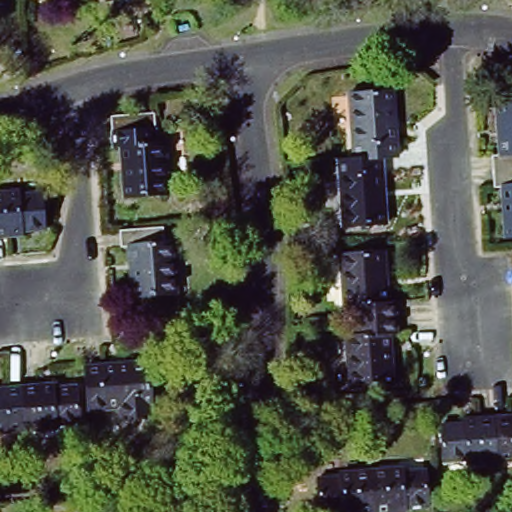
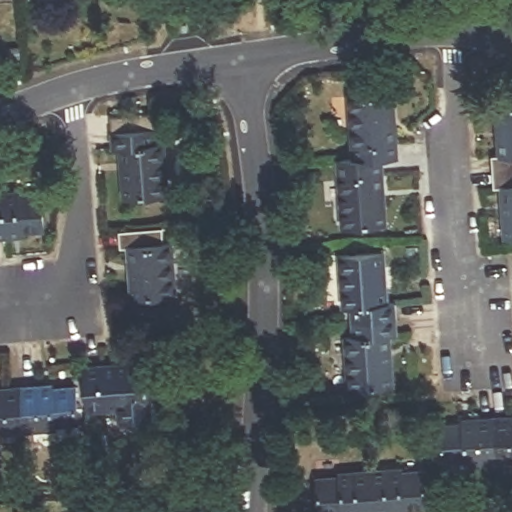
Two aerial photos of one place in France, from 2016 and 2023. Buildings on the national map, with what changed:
unchanged [(346,93),(390,90),(391,109),(395,157),(377,158),(350,159),(346,93)]
unchanged [(485,159),(493,158),(490,108),(512,107),(512,174),(486,175),(485,159)]
unchanged [(120,148),(111,149),(109,119),(154,115),(157,144),(163,144),(167,196),(125,199),(120,148)]
unchanged [(377,158),(381,222),(340,224),(336,160),(350,159),(377,158)]
unchanged [(500,239),(496,188),(488,189),(486,175),(512,174),(512,239),(500,239)]
unchanged [(20,195),(45,193),(47,230),(10,233),(10,238),(0,239),(0,192),(18,190),(20,195)]
unchanged [(122,247),(115,248),(112,233),(158,229),(160,244),(166,243),(170,293),(127,297),(122,247)]
unchanged [(345,302),(340,302),(336,252),(377,249),(380,299),(387,298),(389,316),(347,320),(345,302)]
unchanged [(390,333),(384,333),(387,382),(344,385),(341,335),(348,334),(347,320),(389,316),(390,333)]
unchanged [(141,364),(145,418),(113,420),(112,409),(83,411),(80,369),(141,364)]
unchanged [(12,388),(30,387),(30,393),(70,390),(72,424),(47,426),(48,432),(15,435),(12,388)]
unchanged [(0,436),(0,389),(12,388),(15,435),(0,436)]
unchanged [(508,409),(508,414),(512,414),(512,455),(495,457),(492,410),(508,409)]
unchanged [(463,459),(461,452),(441,453),(438,419),(476,416),(475,411),(492,410),(495,457),(463,459)]
unchanged [(397,470),(398,474),(422,473),(424,509),(390,511),(390,512),(370,512),(367,473),(397,470)]
unchanged [(370,512),(315,512),(315,480),(338,479),(337,474),(367,473),(370,512)]

